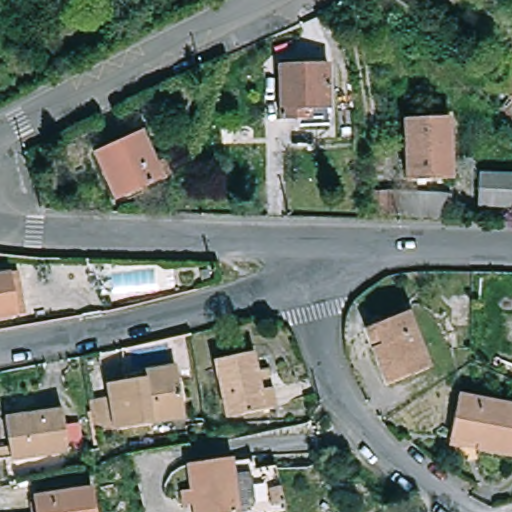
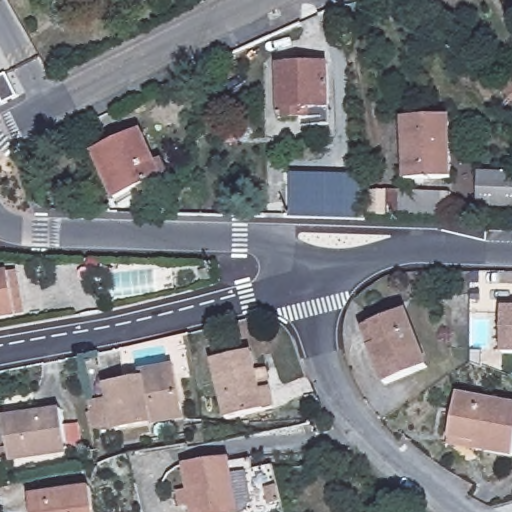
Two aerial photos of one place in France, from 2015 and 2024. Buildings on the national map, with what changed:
unchanged [(279,66),(328,65),(329,109),(311,109),(311,119),(281,120),(279,66)]
unchanged [(495,87),(512,77),(512,101),(495,87)]
unchanged [(406,180),(405,120),(450,119),(452,179),(406,180)]
unchanged [(163,179),(116,199),(95,154),(141,133),(163,179)]
new [(366,175),(366,220),(290,218),(291,173),(366,175)]
unchanged [(481,173),(512,175),(512,208),(479,205),(481,173)]
unchanged [(373,192),(385,193),(385,191),(451,194),(450,220),(373,217),(373,192)]
unchanged [(26,317),(0,320),(0,280),(21,278),(26,317)]
new [(502,353),(503,307),(512,307),(512,353),(502,353)]
unchanged [(371,349),(361,332),(369,328),(401,310),(430,363),(390,384),(371,349)]
unchanged [(251,349),(256,369),(266,367),(270,384),(275,404),(228,417),(213,359),(251,349)]
unchanged [(98,399),(118,394),(115,383),(151,374),(150,367),(183,359),(186,374),(195,411),(126,427),(105,432),(98,399)]
unchanged [(454,434),(459,397),(512,405),(512,456),(478,451),(452,447),(454,434)]
unchanged [(6,451),(12,449),(7,416),(63,407),(70,451),(13,459),(8,461),(6,451)]
unchanged [(245,509),(237,512),(189,512),(188,504),(177,506),(175,489),(185,487),(181,464),(226,457),(228,472),(248,469),(251,491),(253,499),(245,509)]
unchanged [(31,497),(90,488),(93,512),(33,512),(31,497)]
unchanged [(276,504),(264,507),(260,490),(273,488),(276,504)]

